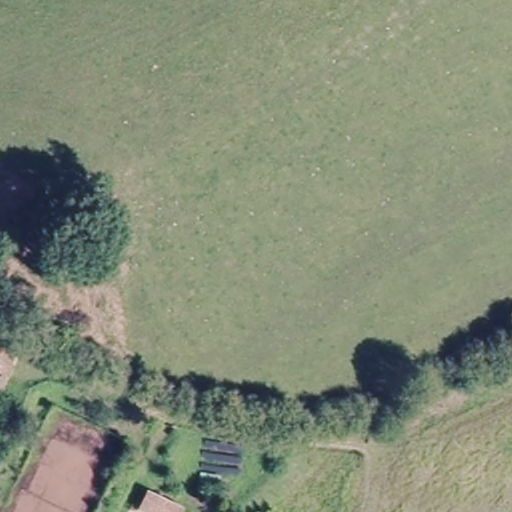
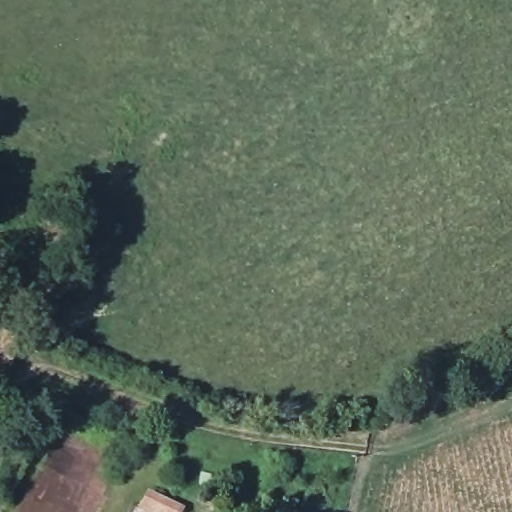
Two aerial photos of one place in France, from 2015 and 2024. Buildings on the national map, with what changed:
unchanged [(0,341),(12,345),(2,366),(0,365),(0,341)]
unchanged [(148,488),(187,504),(184,512),(136,512),(148,488)]

